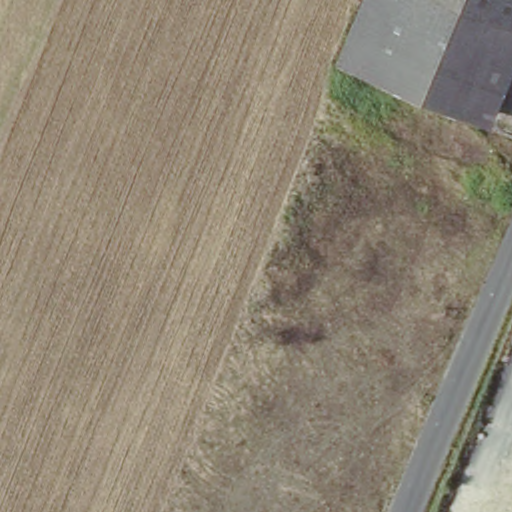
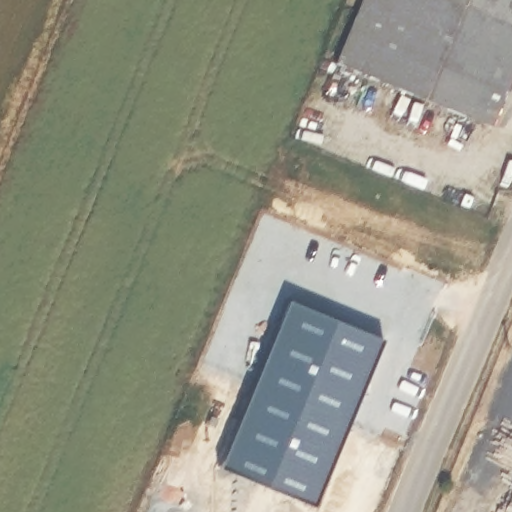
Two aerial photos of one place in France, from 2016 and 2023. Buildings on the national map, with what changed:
unchanged [(342,68),(372,0),(512,0),(512,24),(472,121),(342,68)]
unchanged [(472,121),(512,24),(512,85),(495,131),(472,121)]
new [(379,344),(313,512),(312,512),(217,474),(283,306),(379,344)]

